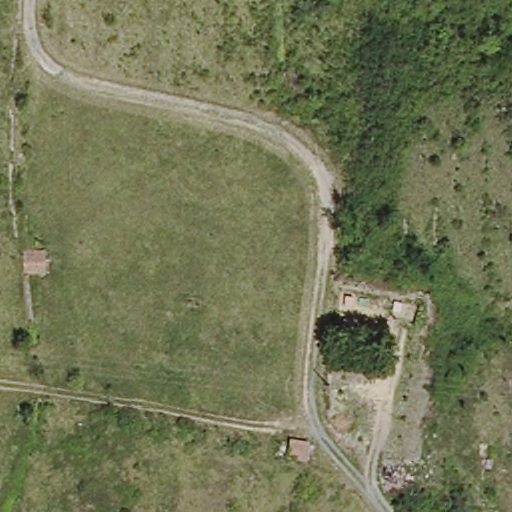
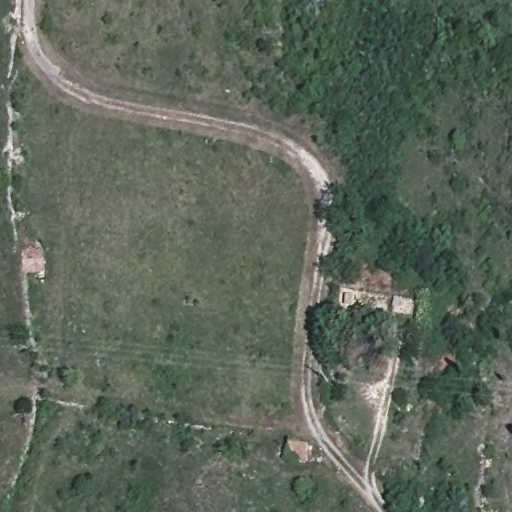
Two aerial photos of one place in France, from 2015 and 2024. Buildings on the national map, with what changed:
unchanged [(25,265),(23,242),(44,242),(48,267),(25,265)]
unchanged [(301,464),(281,462),(284,440),(304,442),(301,464)]
unchanged [(404,461),(400,494),(376,491),(378,461),(404,461)]

